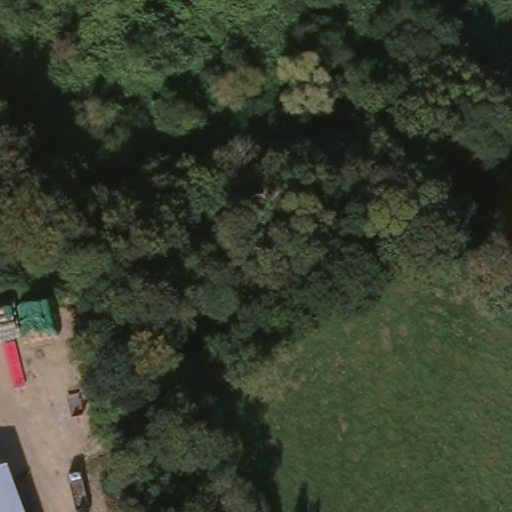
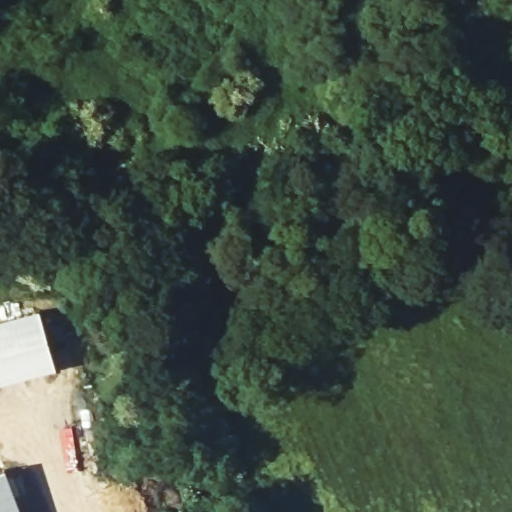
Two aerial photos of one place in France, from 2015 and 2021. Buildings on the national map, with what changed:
new [(38,313),(55,370),(0,386),(0,324),(38,313)]
unchanged [(6,469),(21,512),(0,512),(0,471),(6,469)]

